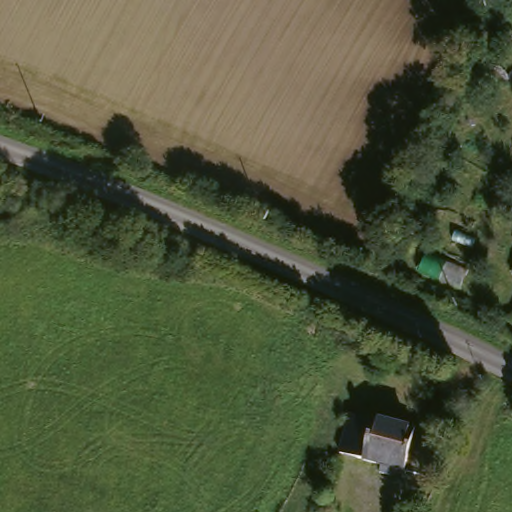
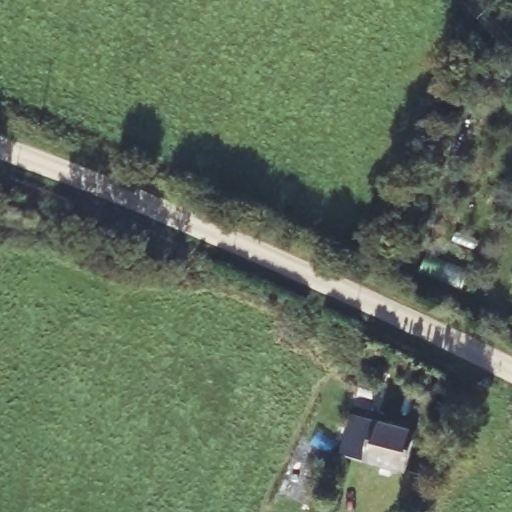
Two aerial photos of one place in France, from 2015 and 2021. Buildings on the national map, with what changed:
unchanged [(415,432),(406,472),(340,457),(350,417),(415,432)]

